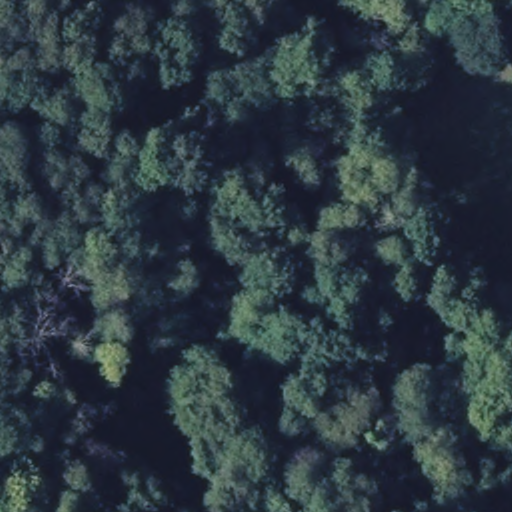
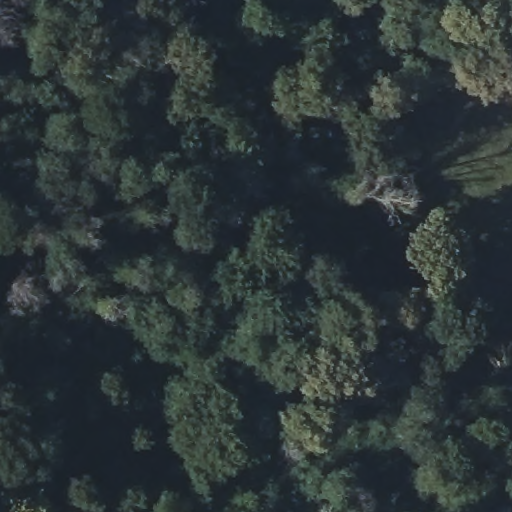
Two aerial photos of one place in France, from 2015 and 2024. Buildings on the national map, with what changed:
[]

